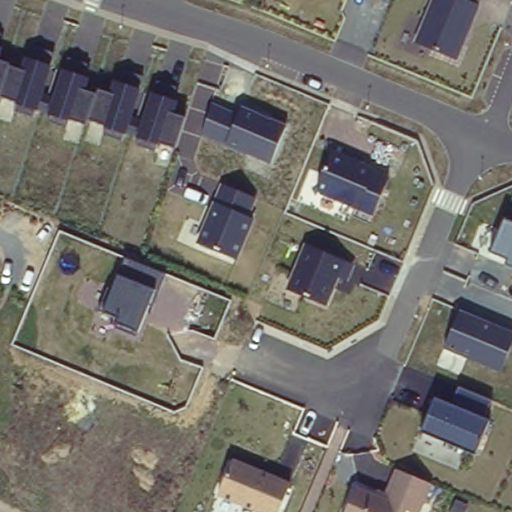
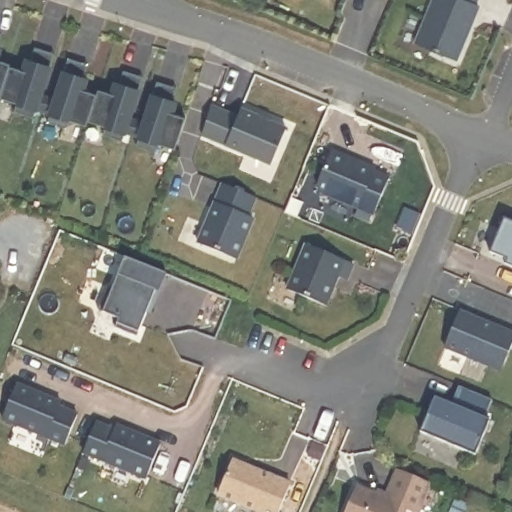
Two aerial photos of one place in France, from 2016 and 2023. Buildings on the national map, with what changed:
unchanged [(430,0),(475,0),(473,4),(477,5),(456,60),(414,42),(430,0)]
unchanged [(0,90),(0,59),(13,63),(11,65),(45,77),(41,91),(54,97),(60,83),(95,92),(99,86),(132,100),(130,114),(145,119),(150,107),(185,116),(174,146),(156,141),(152,150),(137,145),(139,138),(122,134),(120,138),(103,132),(102,124),(88,117),(85,120),(67,116),(64,125),(47,118),(49,112),(35,106),(30,115),(15,110),(17,101),(0,97),(0,91),(0,90)]
unchanged [(271,162),(201,133),(212,102),(239,112),(241,105),(286,125),(271,162)]
unchanged [(330,151),(376,168),(376,171),(388,176),(375,214),(316,189),(330,151)]
unchanged [(247,218),(252,221),(236,258),(197,244),(220,181),(256,196),(247,218)]
unchanged [(507,258),(490,252),(503,218),(512,222),(512,267),(504,264),(507,258)]
unchanged [(305,245),(353,266),(347,281),(336,281),(326,307),(287,289),(305,245)]
unchanged [(156,290),(140,332),(115,321),(116,316),(103,312),(119,274),(125,257),(165,274),(156,290)]
demolished [(81,282),(105,293),(89,332),(65,321),(81,282)]
unchanged [(443,349),(461,306),(512,330),(512,346),(500,371),(443,349)]
new [(11,383),(77,413),(64,444),(0,416),(0,408),(11,383)]
unchanged [(435,399),(453,405),(460,389),(490,402),(481,416),(489,420),(475,452),(422,430),(435,399)]
new [(95,420),(160,450),(147,481),(80,452),(95,420)]
unchanged [(290,480),(278,512),(253,512),(214,498),(230,460),(290,480)]
unchanged [(372,492),(374,489),(385,492),(396,468),(431,482),(419,512),(408,512),(405,510),(404,512),(346,512),(357,486),(372,492)]

